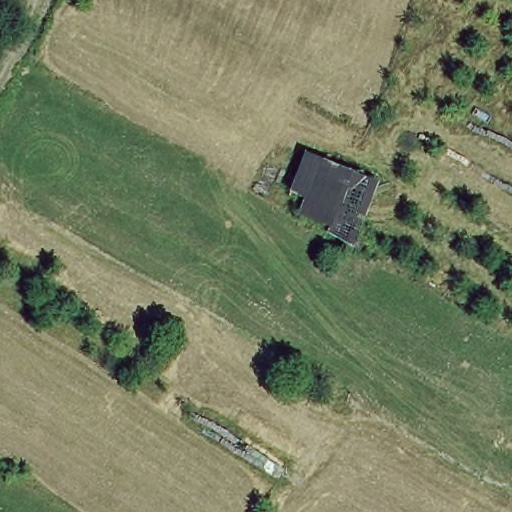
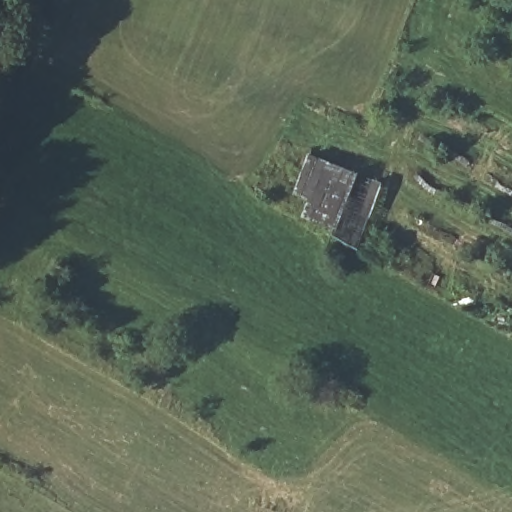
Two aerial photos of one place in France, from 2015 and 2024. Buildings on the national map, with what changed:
unchanged [(302,153),(377,183),(352,250),(325,239),(328,229),(297,217),(302,200),(289,196),(302,153)]

